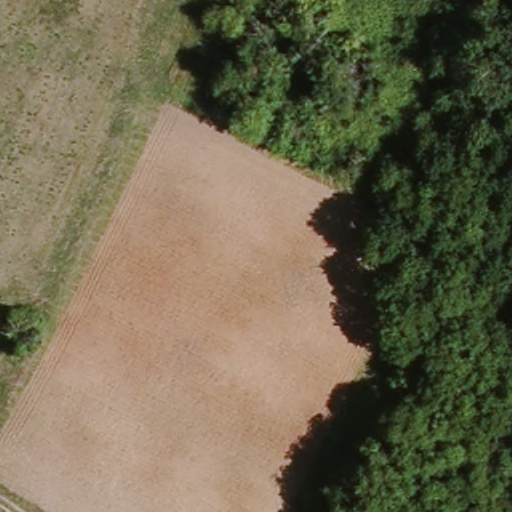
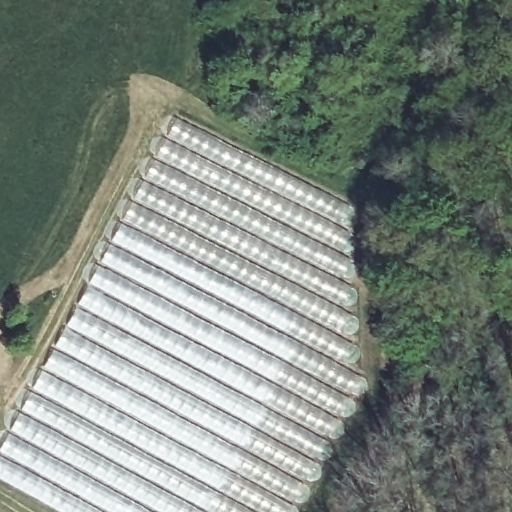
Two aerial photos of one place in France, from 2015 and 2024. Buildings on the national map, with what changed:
new [(346,210),(357,382),(288,512),(63,512),(0,478),(0,450),(173,123),(346,210)]

